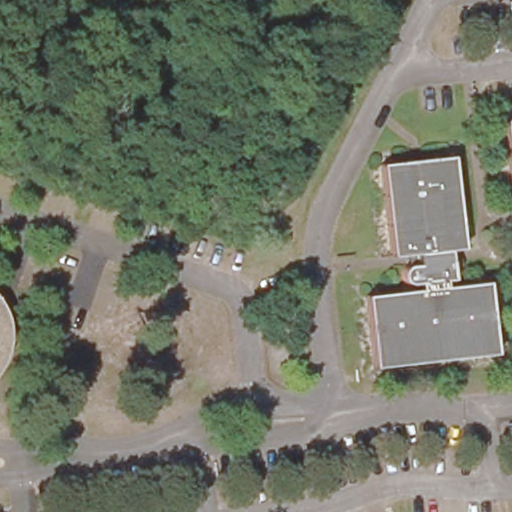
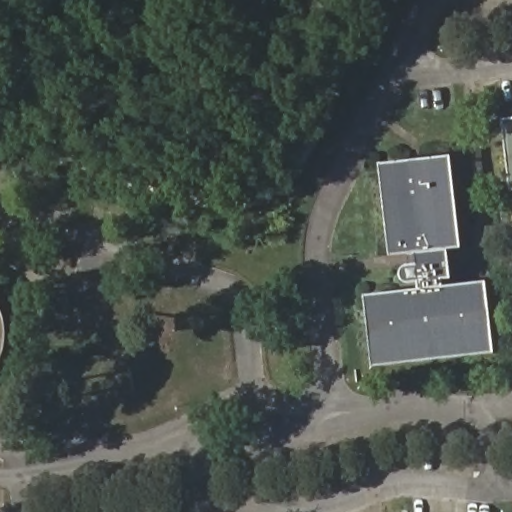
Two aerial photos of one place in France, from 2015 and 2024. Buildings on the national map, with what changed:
unchanged [(512,147),(508,106),(512,106),(512,147)]
unchanged [(406,265),(408,262),(411,260),(414,259),(421,258),(420,249),(398,252),(387,159),(458,151),(469,243),(447,245),(448,256),(455,255),(458,275),(451,275),(451,282),(492,278),(500,349),(379,364),(371,292),(425,285),(424,279),(417,280),(412,280),(409,278),(407,276),(405,273),(404,270),(405,268),(406,265)]
unchanged [(1,314),(1,323),(0,331),(0,307),(1,314)]

